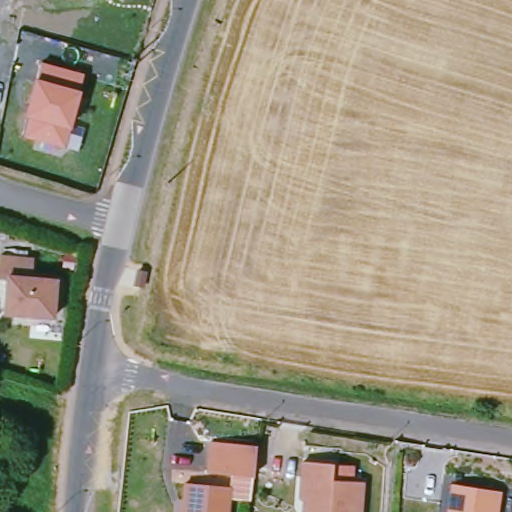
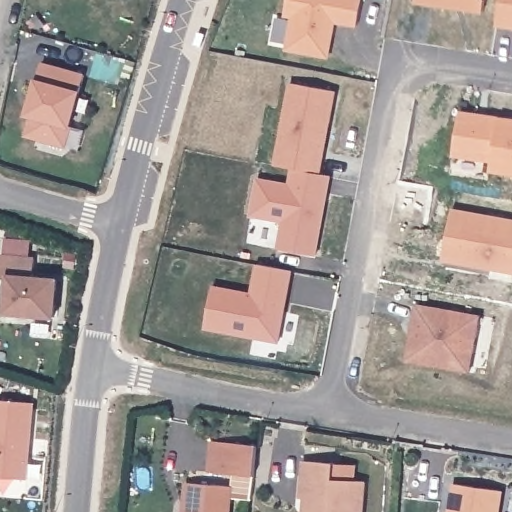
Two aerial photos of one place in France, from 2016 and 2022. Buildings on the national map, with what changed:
new [(291,18),(284,17),(287,0),(361,0),(356,27),(335,24),(329,57),(286,49),(291,18)]
new [(486,0),(484,13),(465,11),(463,7),(456,6),(456,9),(418,3),(418,0),(486,0)]
new [(512,0),(512,23),(499,21),(502,0),(512,0)]
unchanged [(86,75),(71,132),(81,134),(76,152),(25,139),(29,117),(24,116),(34,79),(38,79),(42,62),(86,75)]
new [(291,84),(336,92),(330,125),(326,124),(320,157),(324,157),(321,175),(294,170),(276,166),(291,84)]
new [(494,161),(455,154),(462,110),(512,119),(512,173),(492,170),(494,161)]
new [(259,180),(291,186),(294,170),(321,175),(331,177),(327,195),(320,194),(315,221),(322,222),(316,257),(279,250),(284,222),(252,217),(259,180)]
new [(471,263),(470,266),(442,260),(439,256),(448,210),(512,222),(512,271),(501,269),(471,263)]
unchanged [(9,275),(1,273),(4,250),(41,257),(38,273),(61,278),(54,317),(4,310),(9,275)]
new [(214,287),(253,295),(258,266),(292,272),(279,343),(206,329),(214,287)]
new [(405,341),(410,342),(414,324),(408,323),(411,304),(475,316),(464,372),(401,361),(405,341)]
new [(29,402),(24,477),(0,476),(0,401),(29,402)]
unchanged [(257,450),(254,481),(208,476),(212,445),(257,450)]
unchanged [(334,468),(333,485),(364,487),(362,512),(309,512),(310,505),(301,504),(304,466),(334,468)]
unchanged [(231,488),(228,512),(183,512),(186,484),(231,488)]
unchanged [(494,512),(445,512),(450,484),(497,492),(494,512)]

